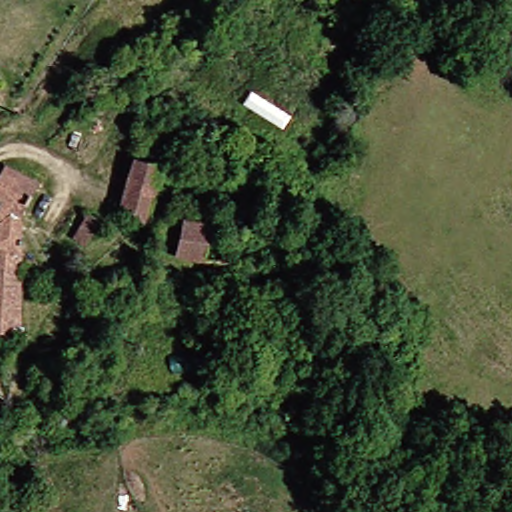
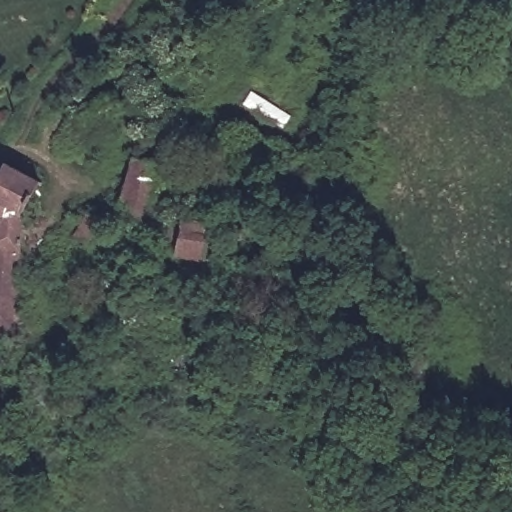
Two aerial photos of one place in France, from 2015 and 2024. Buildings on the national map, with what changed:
unchanged [(43,177),(20,214),(19,251),(20,300),(0,297),(0,167),(4,159),(43,177)]
unchanged [(144,231),(119,213),(135,170),(163,180),(144,231)]
unchanged [(86,211),(106,224),(93,247),(74,235),(86,211)]
unchanged [(182,219),(221,225),(213,265),(174,255),(182,219)]
unchanged [(0,338),(0,297),(20,300),(20,335),(0,338)]

